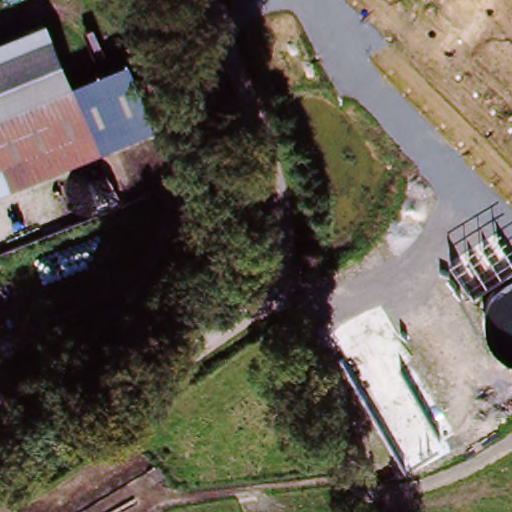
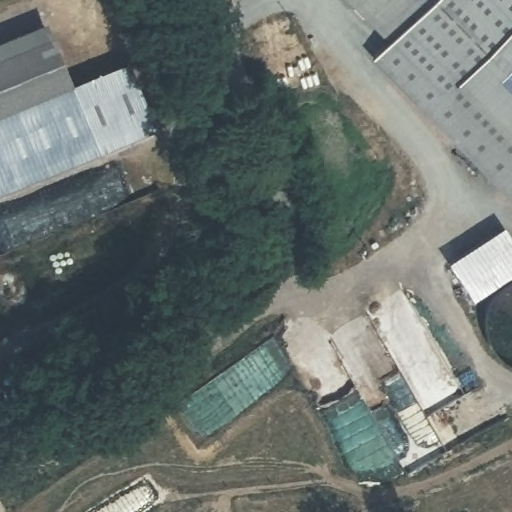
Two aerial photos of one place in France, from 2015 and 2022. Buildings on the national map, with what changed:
new [(385,37),(379,30),(348,0),(512,0),(512,200),(372,56),(389,41),(385,37)]
unchanged [(128,73),(152,139),(0,197),(0,53),(48,33),(72,95),(128,73)]
new [(505,229),(512,239),(512,274),(474,299),(451,265),(495,236),(505,229)]
demolished [(426,339),(366,368),(353,343),(416,313),(426,339)]
unchanged [(0,340),(0,329),(4,338),(0,340)]

